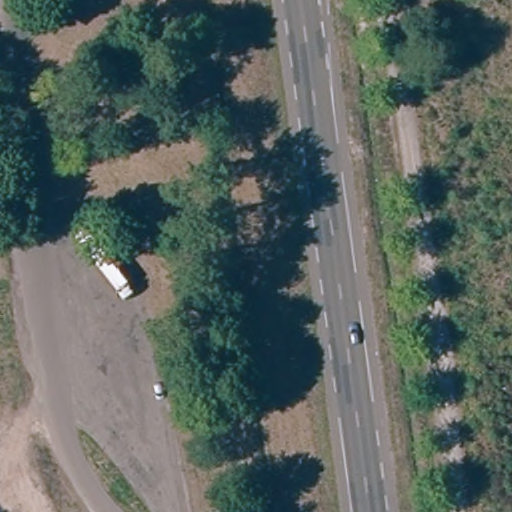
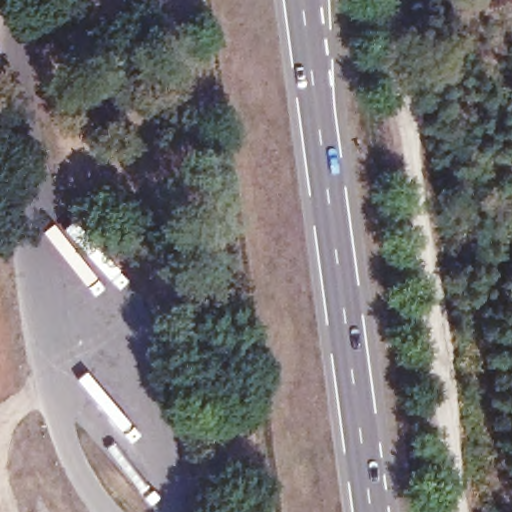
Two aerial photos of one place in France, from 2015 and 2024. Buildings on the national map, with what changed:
[]

